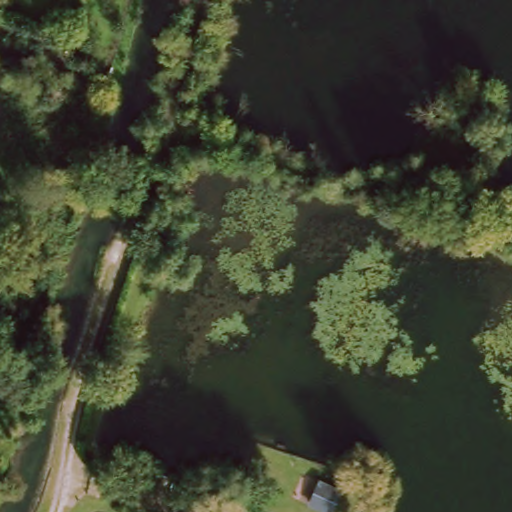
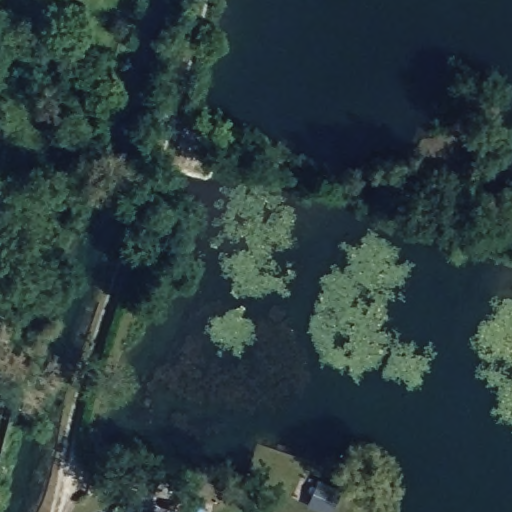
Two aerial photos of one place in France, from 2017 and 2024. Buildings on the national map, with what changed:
unchanged [(320,479),(347,491),(339,512),(327,512),(310,504),(320,479)]

